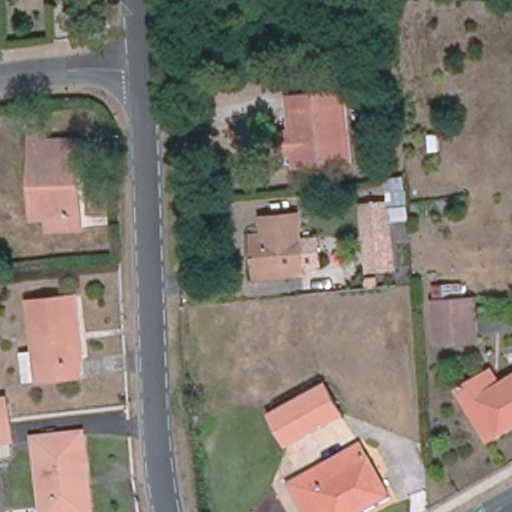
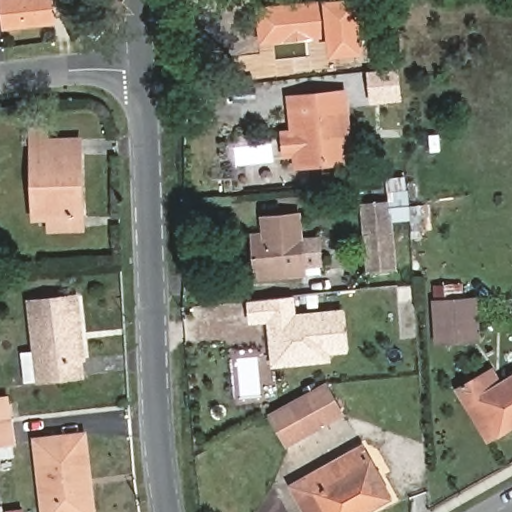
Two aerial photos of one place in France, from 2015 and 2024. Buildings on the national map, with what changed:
new [(58,25),(4,31),(0,0),(55,0),(58,25)]
new [(365,53),(329,57),(327,38),(260,43),(256,6),(313,0),(359,0),(365,53)]
new [(402,71),(405,102),(375,104),(373,74),(402,71)]
unchanged [(285,129),(294,128),(292,104),(291,94),(344,89),(345,98),(351,156),(298,161),(296,148),(287,149),(285,129)]
new [(383,178),(380,137),(379,132),(404,130),(404,135),(407,175),(383,178)]
unchanged [(91,217),(46,218),(43,132),(56,131),(57,155),(89,155),(91,217)]
unchanged [(408,191),(412,191),(413,222),(393,226),(397,270),(370,275),(363,205),(386,202),(385,179),(407,177),(408,191)]
unchanged [(304,274),(258,278),(254,236),(266,235),(264,218),(299,215),(304,274)]
unchanged [(85,359),(81,360),(83,376),(38,381),(29,302),(77,297),(85,359)]
new [(297,300),(299,319),(347,314),(350,352),(333,354),(333,361),(272,367),(268,322),(257,323),(256,304),(297,300)]
unchanged [(479,340),(438,343),(435,302),(476,300),(479,340)]
unchanged [(461,390),(493,370),(501,385),(512,378),(512,426),(489,441),(461,390)]
unchanged [(343,414),(289,444),(272,415),(327,385),(343,414)]
unchanged [(8,388),(9,393),(11,408),(14,433),(12,433),(14,446),(0,448),(0,388),(8,388)]
unchanged [(80,481),(83,512),(45,512),(37,441),(84,436),(89,480),(80,481)]
unchanged [(307,512),(294,487),(363,448),(392,499),(367,512),(307,512)]

